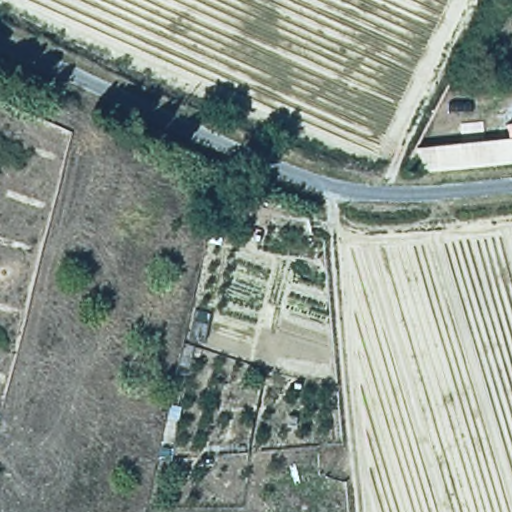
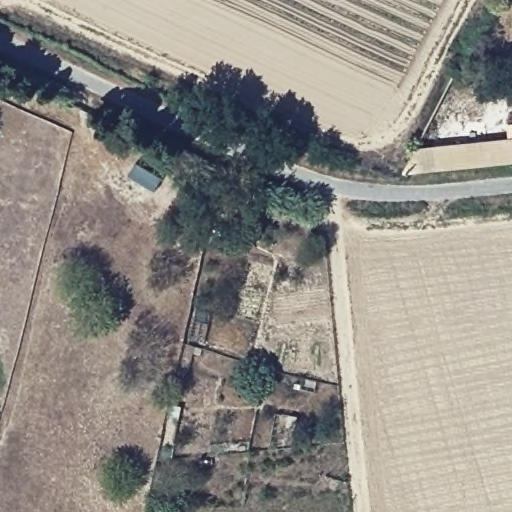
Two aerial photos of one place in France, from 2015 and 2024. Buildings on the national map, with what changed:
unchanged [(512,136),(512,162),(401,174),(415,147),(512,136)]

